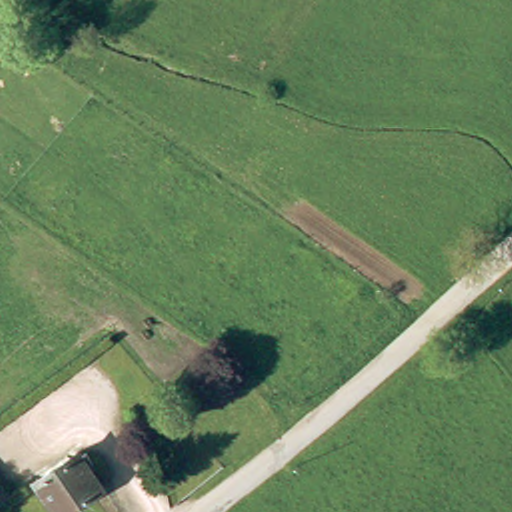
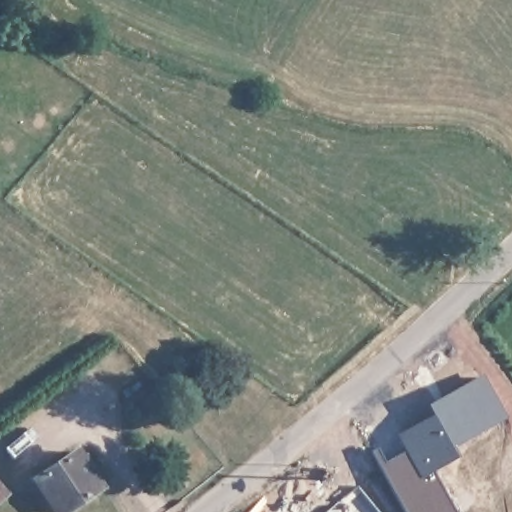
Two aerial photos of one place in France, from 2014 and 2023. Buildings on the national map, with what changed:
new [(435,408),(450,400),(447,396),(482,377),(503,417),(469,436),(466,432),(449,441),(457,455),(430,469),(456,512),(406,512),(372,449),(437,412),(435,408)]
unchanged [(97,488),(62,512),(55,512),(35,482),(75,456),(97,488)]
unchanged [(0,506),(0,488),(9,497),(0,506)]

